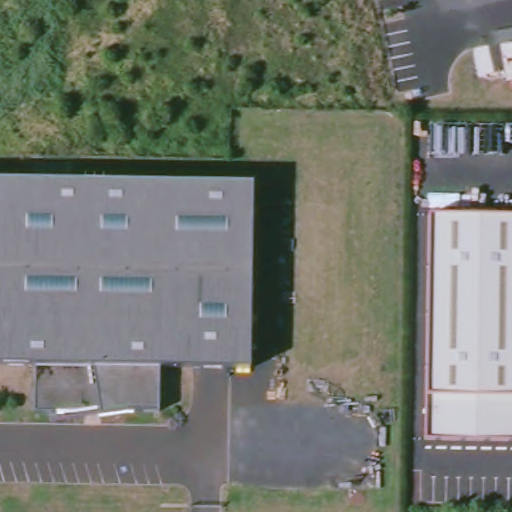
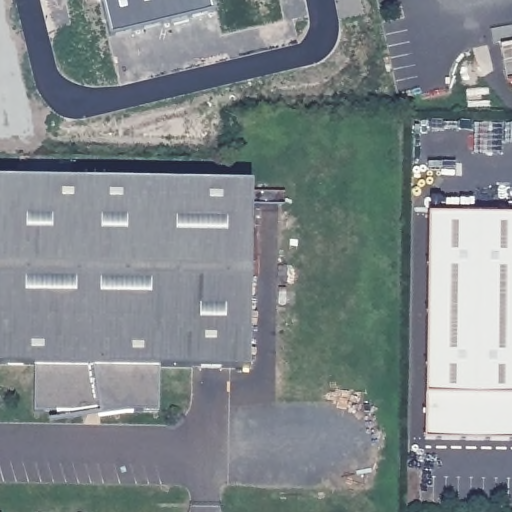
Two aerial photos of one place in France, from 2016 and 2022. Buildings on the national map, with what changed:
new [(212,5),(114,30),(107,0),(211,0),(212,5)]
unchanged [(255,186),(252,372),(161,370),(161,414),(135,414),(128,414),(100,417),(100,411),(74,415),(57,415),(57,414),(34,414),(35,368),(0,367),(0,181),(255,186)]
unchanged [(512,217),(512,443),(423,441),(423,416),(427,216),(512,217)]

